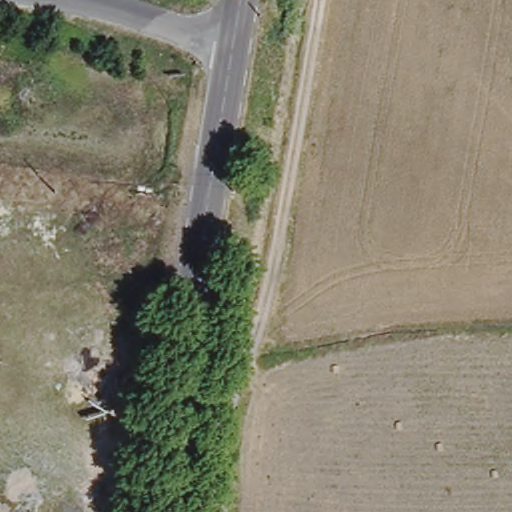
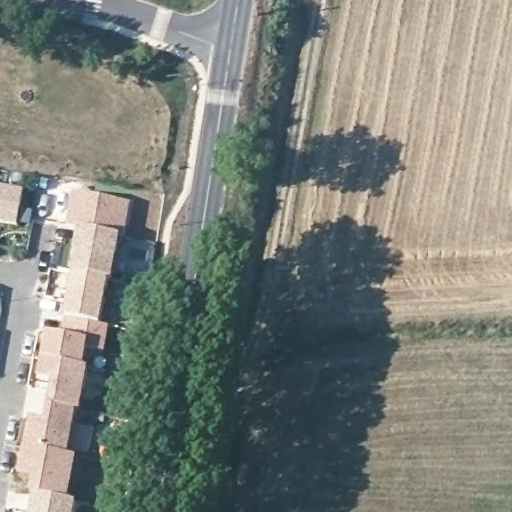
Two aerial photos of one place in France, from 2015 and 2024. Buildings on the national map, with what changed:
new [(23,227),(0,223),(0,187),(28,192),(23,227)]
new [(71,227),(77,192),(133,203),(126,237),(71,227)]
new [(122,236),(114,281),(63,271),(68,241),(82,244),(84,230),(122,236)]
new [(110,280),(101,325),(67,318),(74,273),(110,280)]
new [(55,316),(113,326),(108,352),(90,349),(88,368),(47,360),(55,316)]
new [(92,369),(84,413),(53,407),(58,382),(43,380),(47,360),(92,369)]
new [(80,413),(73,457),(31,449),(36,420),(51,422),(53,407),(80,413)]
new [(72,503),(38,496),(40,481),(26,479),(31,449),(80,458),(72,503)]
new [(72,503),(81,505),(80,512),(35,512),(38,496),(72,503)]

